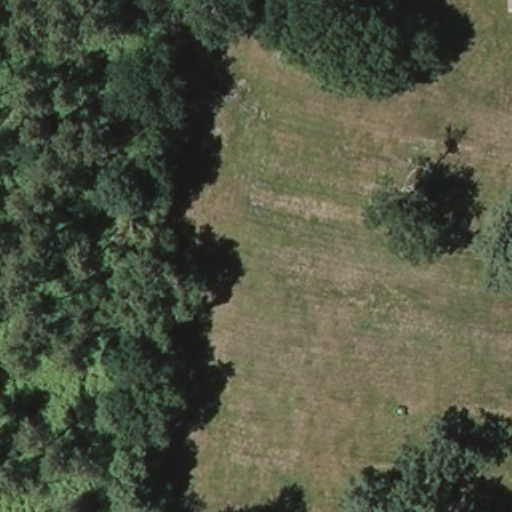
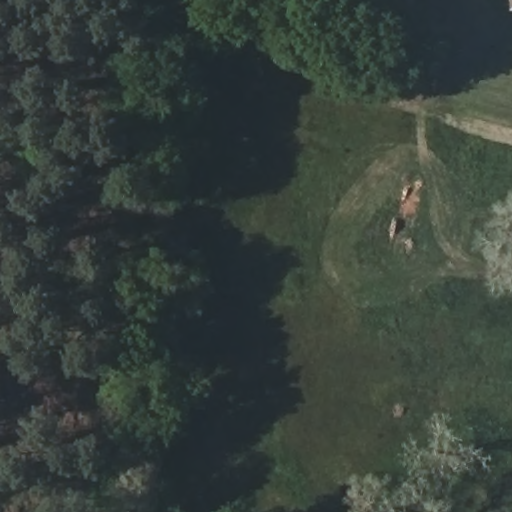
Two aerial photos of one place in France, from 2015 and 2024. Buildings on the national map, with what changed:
unchanged [(510,0),(512,0),(512,19),(511,19),(510,0)]

